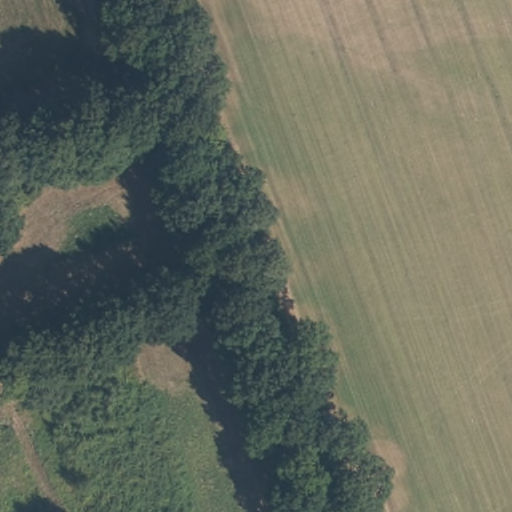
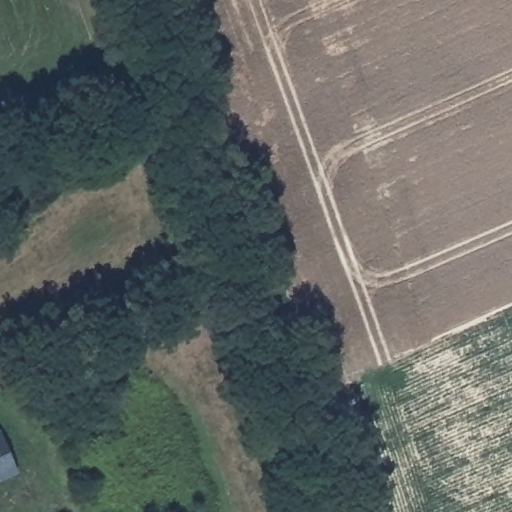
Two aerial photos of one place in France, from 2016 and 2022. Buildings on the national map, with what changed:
new [(19,473),(0,481),(0,430),(19,473)]

